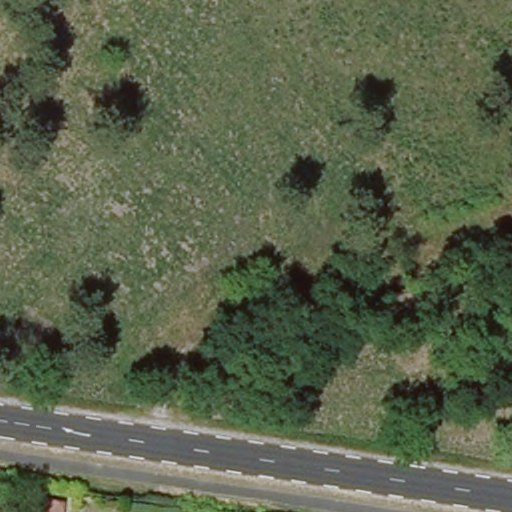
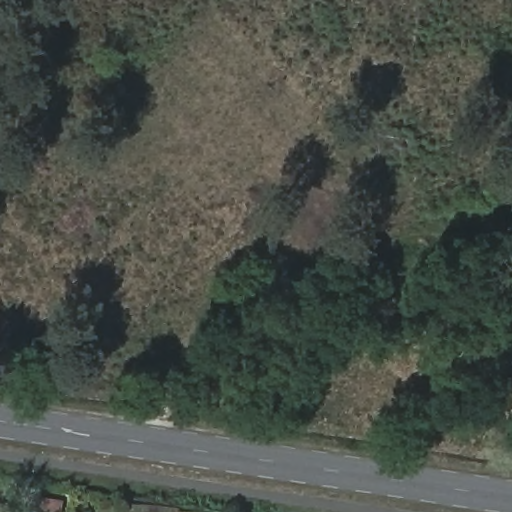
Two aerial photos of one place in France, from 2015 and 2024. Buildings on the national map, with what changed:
unchanged [(65,512),(23,512),(26,499),(66,505),(65,512)]

